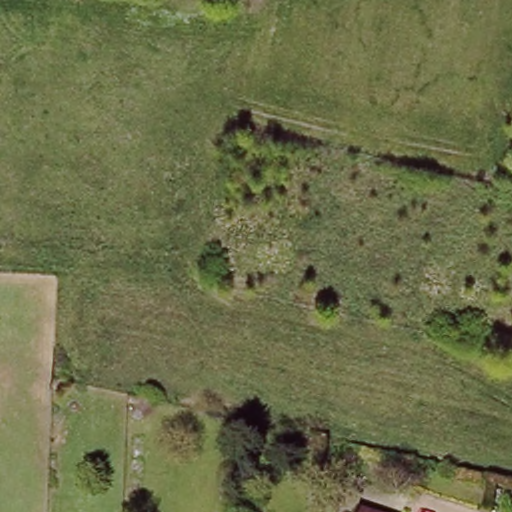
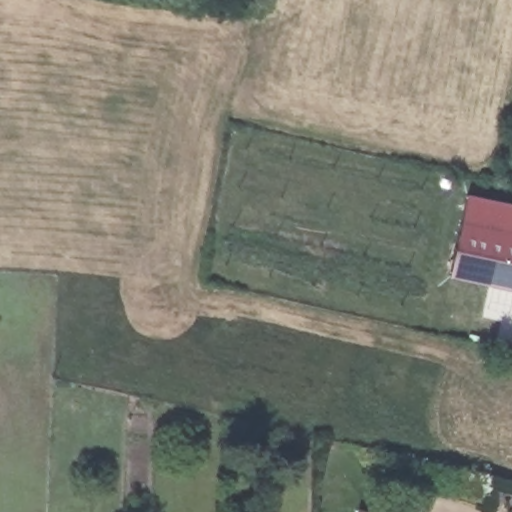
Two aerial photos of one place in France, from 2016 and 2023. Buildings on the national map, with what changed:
new [(467,192),(512,202),(512,287),(449,275),(467,192)]

